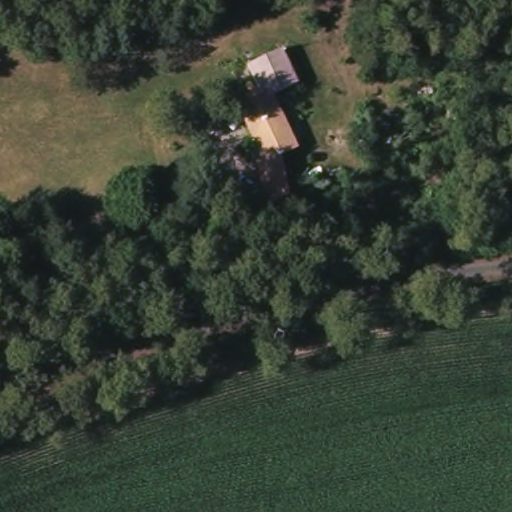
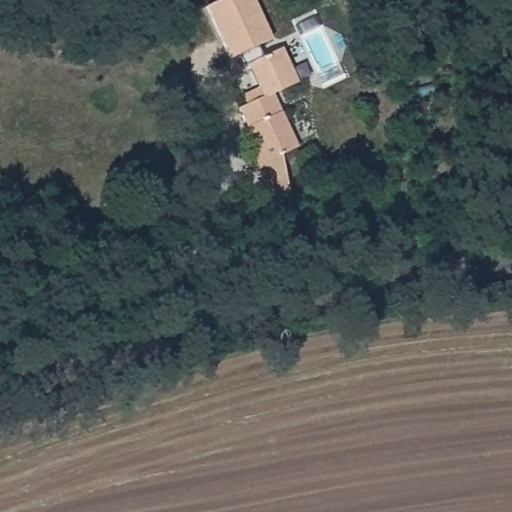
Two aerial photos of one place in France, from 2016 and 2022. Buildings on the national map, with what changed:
new [(254,0),(272,38),(256,45),(260,55),(243,64),(240,54),(229,58),(205,6),(219,0),(254,0)]
unchanged [(252,153),(255,151),(232,112),(243,106),(237,98),(251,89),(238,67),(268,51),(285,84),(265,94),(291,140),(298,148),(280,159),(259,170),(252,153)]
unchanged [(296,192),(265,208),(252,174),(259,170),(280,159),(296,192)]

